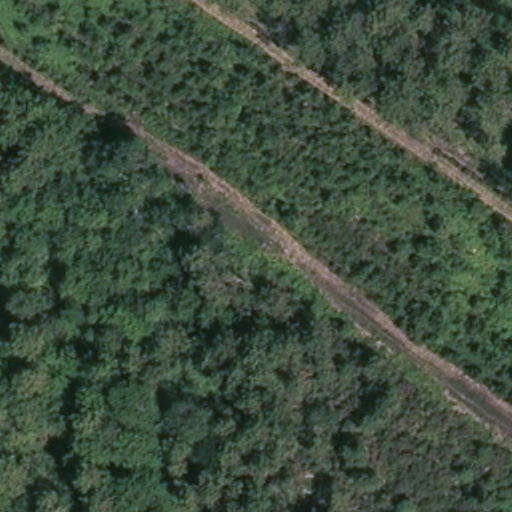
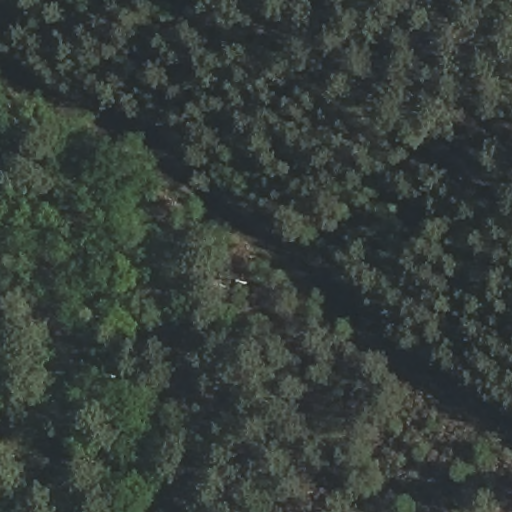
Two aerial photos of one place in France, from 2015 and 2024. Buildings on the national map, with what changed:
[]

